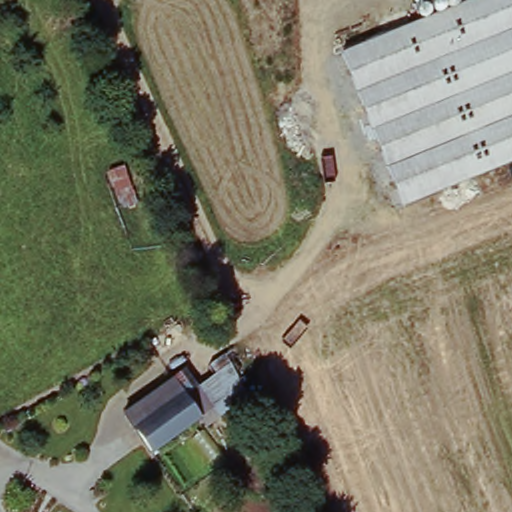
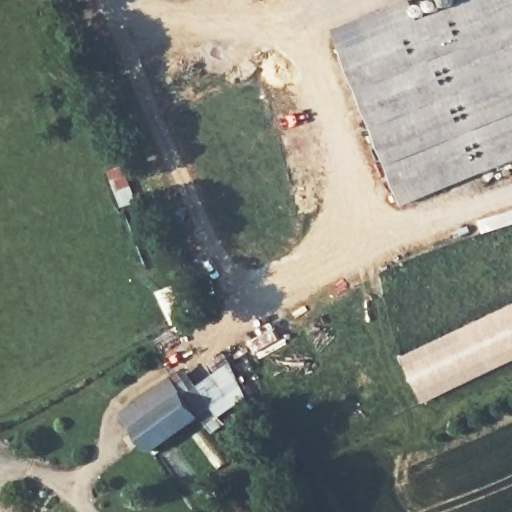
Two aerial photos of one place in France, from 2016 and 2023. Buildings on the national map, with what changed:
unchanged [(405,206),(341,51),(467,0),(512,0),(512,162),(405,206)]
new [(512,308),(512,359),(423,401),(404,359),(512,308)]
unchanged [(228,368),(235,385),(243,402),(217,420),(209,409),(196,390),(228,368)]
unchanged [(125,412),(174,379),(185,398),(196,390),(209,409),(149,449),(125,412)]

